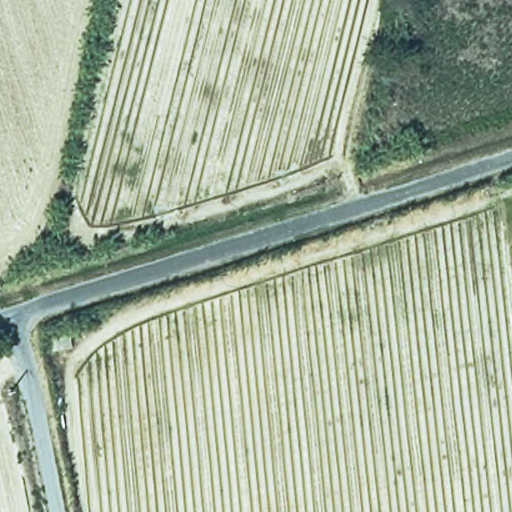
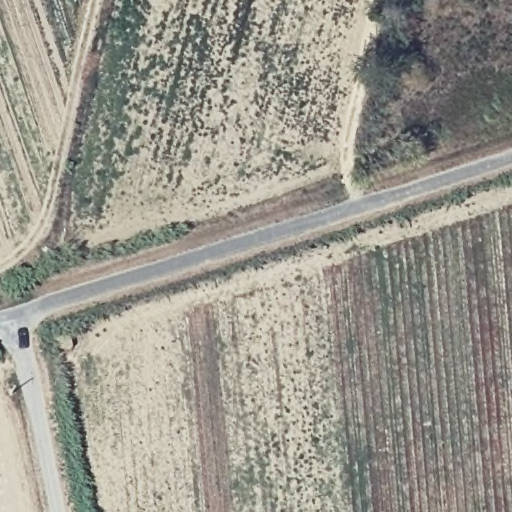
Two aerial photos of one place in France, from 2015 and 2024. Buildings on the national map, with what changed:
unchanged [(69,336),(72,348),(53,352),(51,340),(69,336)]

